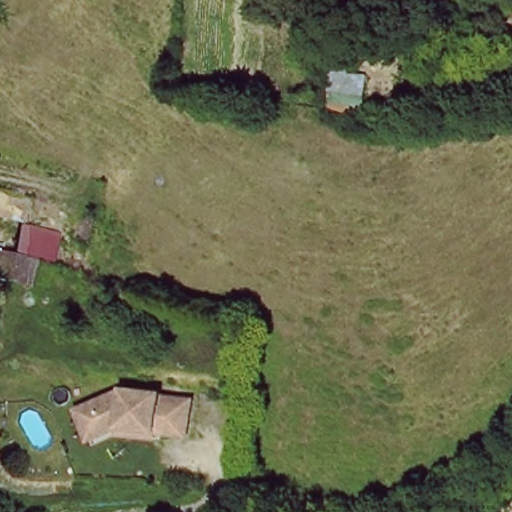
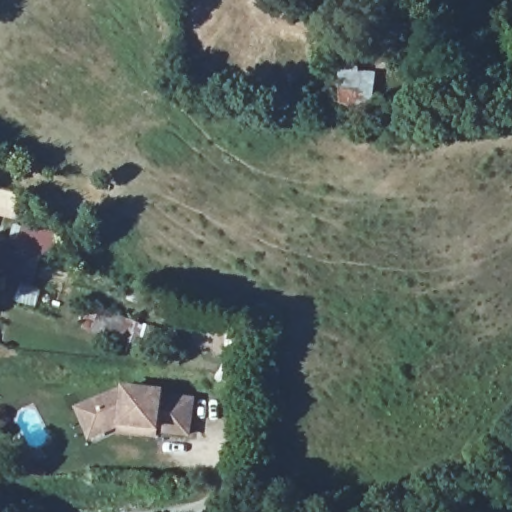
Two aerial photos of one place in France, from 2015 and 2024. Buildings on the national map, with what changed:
unchanged [(339,105),(336,42),(359,41),(360,71),(375,76),(373,111),(339,105)]
unchanged [(0,293),(0,269),(1,265),(13,268),(44,277),(37,303),(5,295),(0,293)]
unchanged [(154,354),(84,331),(90,305),(163,330),(154,354)]
unchanged [(118,421),(104,426),(87,431),(76,401),(92,395),(124,383),(162,390),(161,395),(193,400),(186,436),(155,430),(154,435),(117,428),(118,421)]

